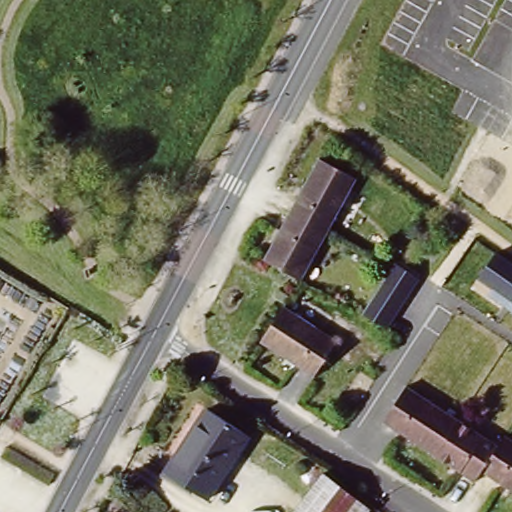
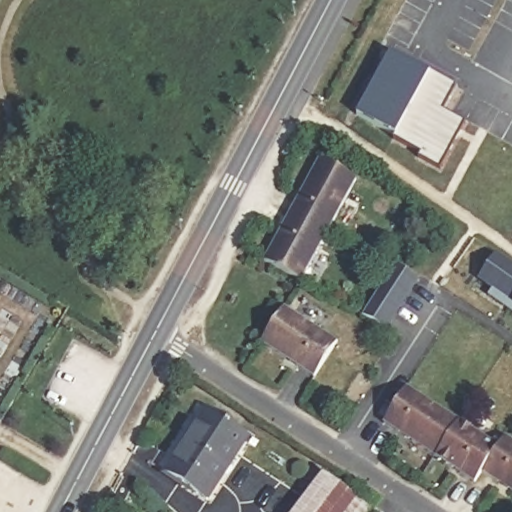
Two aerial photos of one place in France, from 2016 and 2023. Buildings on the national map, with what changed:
new [(388,51),(433,74),(434,74),(397,135),(353,112),(388,51)]
new [(397,135),(434,74),(433,74),(435,71),(462,86),(448,110),(470,122),(443,168),(420,156),(423,152),(395,137),(397,135)]
unchanged [(318,164),(358,186),(302,283),(264,259),(318,164)]
unchanged [(512,305),(477,281),(495,254),(512,266),(512,305)]
unchanged [(419,279),(385,334),(362,319),(395,264),(419,279)]
unchanged [(286,304),(339,338),(314,376),(261,342),(286,304)]
unchanged [(505,435),(512,440),(512,491),(484,474),(479,484),(387,426),(409,388),(499,445),(505,435)]
unchanged [(243,440),(204,503),(165,478),(204,415),(243,440)]
unchanged [(318,477),(362,512),(292,512),(318,477)]

